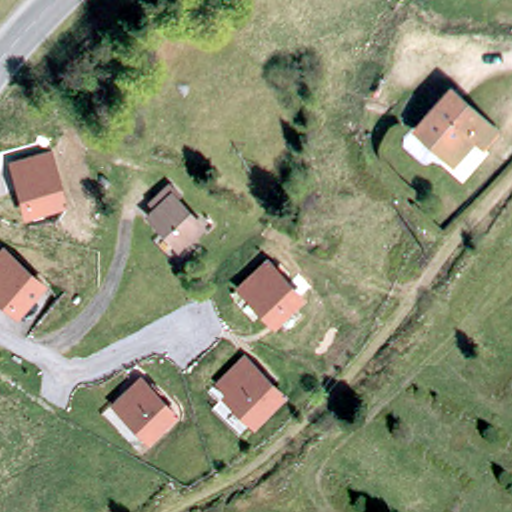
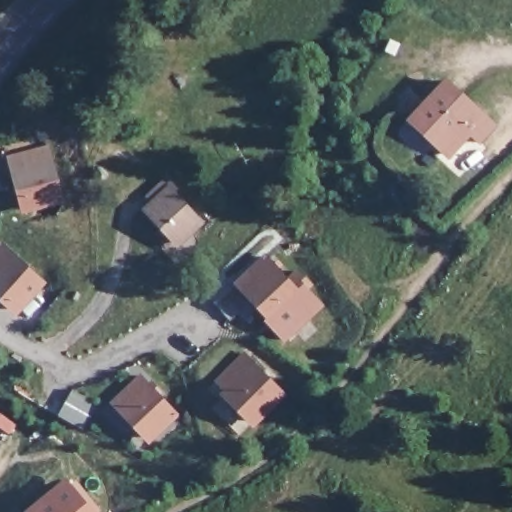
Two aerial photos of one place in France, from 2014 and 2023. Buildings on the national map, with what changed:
unchanged [(449,86),(492,129),(477,144),(469,136),(447,159),(412,124),(449,86)]
unchanged [(5,156),(47,143),(64,202),(21,214),(5,156)]
unchanged [(175,194),(170,198),(202,232),(177,254),(170,245),(147,220),(151,215),(144,207),(167,186),(175,194)]
unchanged [(46,284),(15,317),(0,303),(0,245),(2,243),(46,284)]
unchanged [(300,295),(272,321),(244,291),(258,278),(250,269),(262,255),(300,295)]
unchanged [(287,395),(252,430),(220,393),(223,390),(213,380),(242,350),(287,395)]
unchanged [(178,416),(150,446),(115,413),(130,400),(123,391),(140,376),(178,416)]
new [(65,477),(93,512),(24,512),(23,512),(65,477)]

